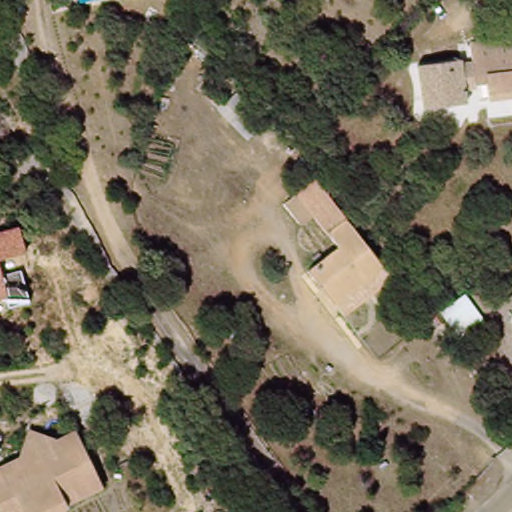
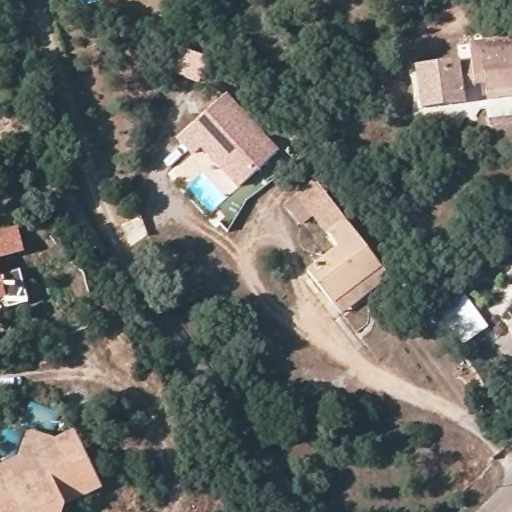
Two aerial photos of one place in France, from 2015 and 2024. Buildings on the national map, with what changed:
unchanged [(127,2),(127,0),(139,0),(127,2)]
unchanged [(489,112),(485,84),(479,55),(476,41),(512,36),(512,109),(489,112)]
unchanged [(485,84),(463,87),(463,103),(420,106),(418,62),(479,55),(485,84)]
new [(229,90),(284,146),(238,187),(201,148),(195,154),(180,137),(229,90)]
unchanged [(349,218),(331,232),(318,216),(303,224),(286,202),(320,179),(349,218)]
unchanged [(345,250),(336,238),(331,232),(349,218),(357,229),(382,262),(330,300),(311,274),(345,250)]
unchanged [(0,261),(3,273),(21,269),(31,300),(8,307),(5,298),(0,300),(0,231),(19,225),(30,253),(0,261)]
unchanged [(393,276),(340,313),(330,300),(382,262),(393,276)]
new [(464,292),(488,324),(463,344),(439,311),(464,292)]
unchanged [(28,432),(58,443),(78,434),(103,487),(65,505),(62,512),(2,512),(0,508),(0,468),(18,459),(28,432)]

